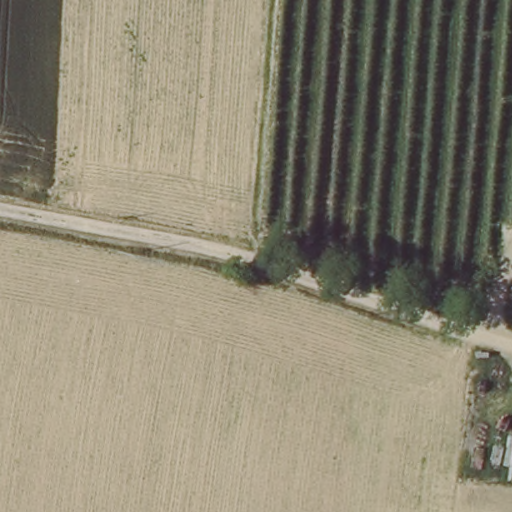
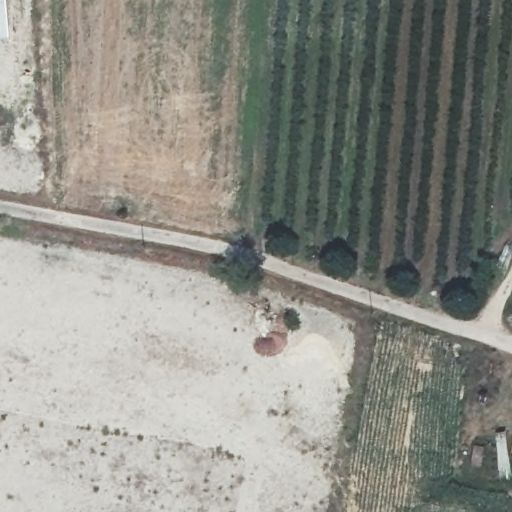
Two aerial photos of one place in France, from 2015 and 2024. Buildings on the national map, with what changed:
new [(9,40),(0,41),(0,0),(6,0),(9,40)]

